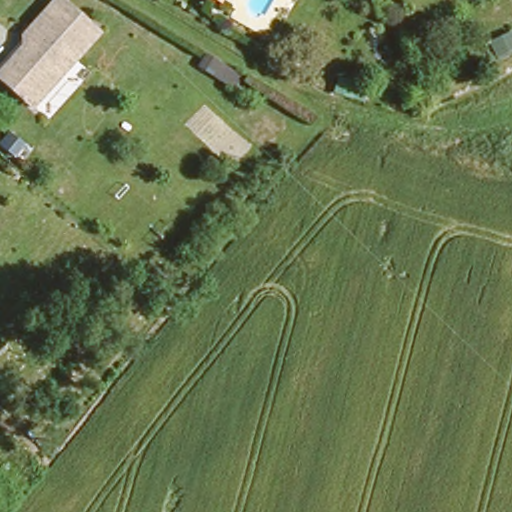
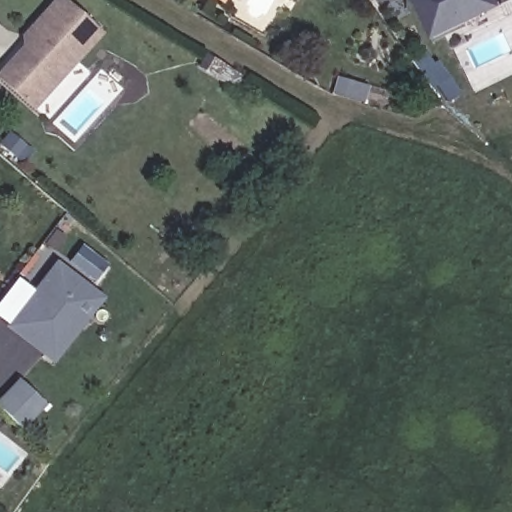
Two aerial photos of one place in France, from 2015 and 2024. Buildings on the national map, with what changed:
unchanged [(40,0),(74,0),(95,19),(60,57),(55,53),(42,66),(40,82),(26,95),(0,72),(0,61),(22,38),(23,18),(40,0)]
new [(434,37),(418,0),(477,0),(483,14),(434,37)]
unchanged [(462,64),(456,51),(478,41),(484,55),(462,64)]
new [(4,324),(55,259),(104,297),(52,362),(4,324)]
new [(20,430),(0,410),(0,396),(17,377),(45,404),(20,430)]

